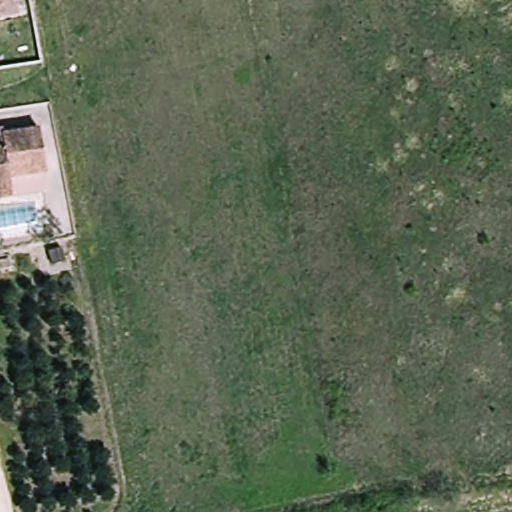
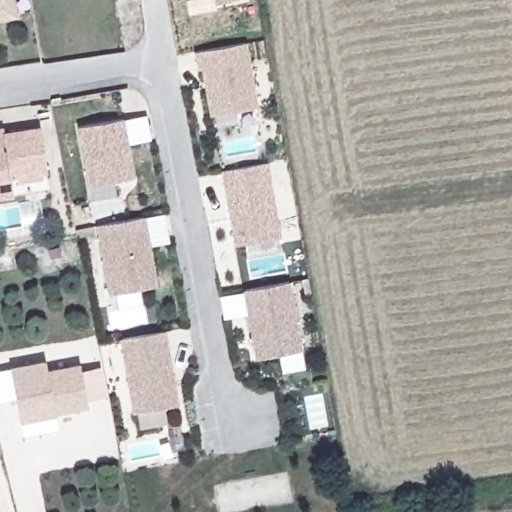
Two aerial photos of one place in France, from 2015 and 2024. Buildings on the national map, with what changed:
unchanged [(0,18),(0,0),(12,0),(16,15),(0,18)]
new [(213,0),(228,0),(214,3),(213,0)]
new [(247,42),(258,105),(210,115),(202,68),(197,69),(194,52),(247,42)]
new [(77,126),(125,118),(135,177),(87,185),(77,126)]
unchanged [(0,131),(1,131),(2,135),(40,131),(45,171),(8,178),(8,183),(12,196),(0,198),(0,131)]
new [(267,160),(280,235),(235,244),(221,170),(267,160)]
new [(107,292),(95,225),(145,215),(157,285),(107,292)]
new [(290,281),(300,348),(254,357),(240,289),(290,281)]
new [(177,403),(132,411),(118,337),(165,330),(177,403)]
new [(45,360),(47,370),(80,364),(88,407),(55,413),(58,427),(22,434),(10,366),(45,360)]

